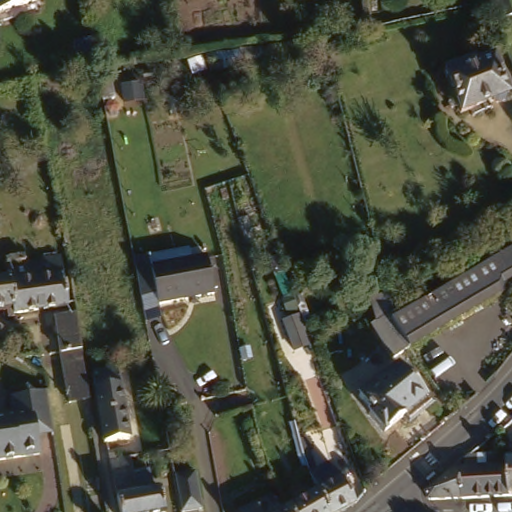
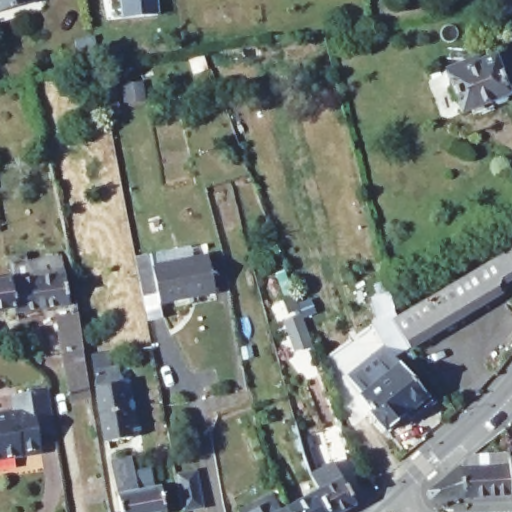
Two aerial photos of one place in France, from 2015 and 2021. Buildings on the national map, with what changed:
unchanged [(0,12),(0,0),(37,0),(0,12)]
new [(158,16),(123,19),(122,0),(157,0),(158,16)]
unchanged [(481,69),(490,64),(488,60),(493,57),(495,62),(501,60),(502,61),(512,57),(512,99),(466,118),(462,110),(455,112),(452,106),(460,104),(449,76),(479,64),(481,69)]
unchanged [(162,262),(218,250),(225,288),(167,300),(165,291),(153,293),(145,252),(159,249),(162,262)]
unchanged [(10,261),(15,259),(15,253),(32,250),(33,257),(63,252),(65,269),(69,268),(73,301),(19,310),(14,277),(10,261)]
unchanged [(380,325),(385,322),(378,298),(394,295),(401,321),(416,312),(512,253),(512,288),(509,297),(418,352),(401,358),(392,346),(380,325)]
unchanged [(14,277),(19,310),(19,312),(15,312),(14,305),(0,306),(0,279),(14,277)]
unchanged [(96,397),(75,401),(64,330),(59,330),(57,320),(62,320),(61,312),(83,308),(96,397)]
unchanged [(408,364),(441,402),(419,421),(414,416),(395,432),(391,428),(378,413),(380,411),(369,397),(390,381),(408,364)]
unchanged [(114,439),(112,439),(111,439),(103,396),(98,372),(124,367),(129,391),(137,435),(114,439)]
unchanged [(43,432),(45,449),(0,455),(0,412),(16,410),(15,392),(52,387),(58,421),(60,431),(43,432)]
unchanged [(327,497),(317,478),(313,462),(333,452),(346,478),(359,501),(363,497),(368,505),(354,512),(297,512),(299,511),(327,497)]
unchanged [(174,512),(129,512),(120,463),(121,462),(120,457),(128,456),(129,461),(140,458),(148,493),(169,488),(174,512)]
unchanged [(512,458),(512,494),(435,497),(433,488),(466,462),(512,458)]
unchanged [(203,506),(204,512),(185,512),(180,486),(179,483),(196,480),(203,506)]
unchanged [(291,512),(257,512),(283,497),(291,512)]

